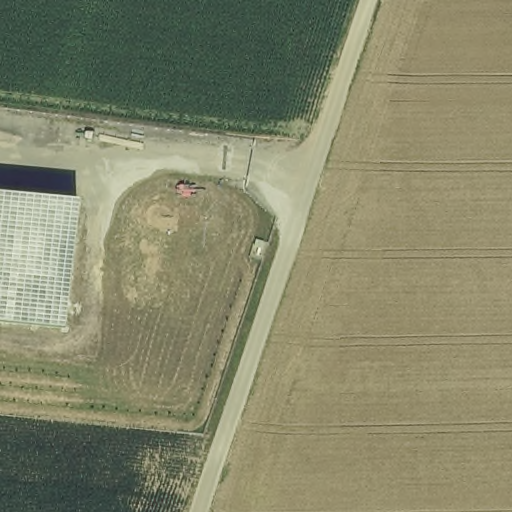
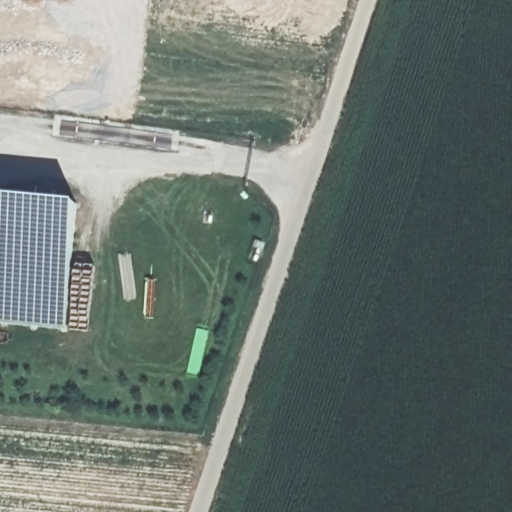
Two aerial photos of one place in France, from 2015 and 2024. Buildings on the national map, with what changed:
unchanged [(0,319),(0,195),(75,203),(62,325),(0,319)]

